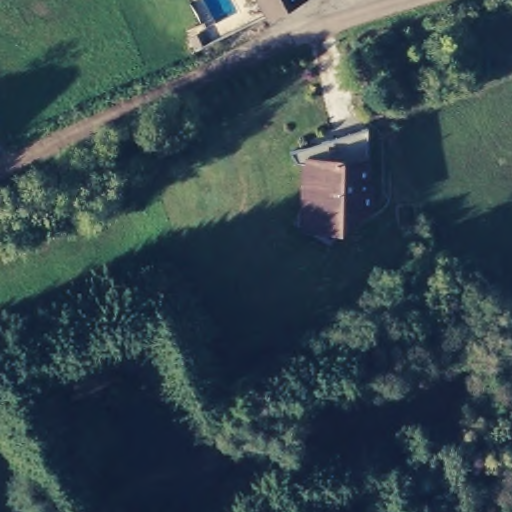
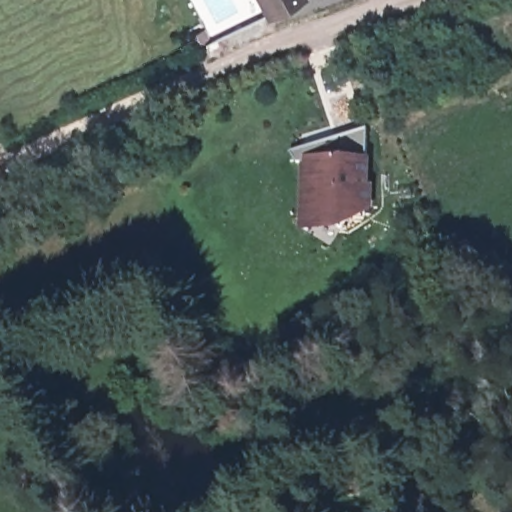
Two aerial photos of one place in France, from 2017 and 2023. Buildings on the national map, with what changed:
unchanged [(271,14),(263,0),(297,0),(271,14)]
unchanged [(369,181),(374,181),(373,207),(341,228),(299,228),(303,158),(292,159),(292,150),(366,124),(369,181)]

